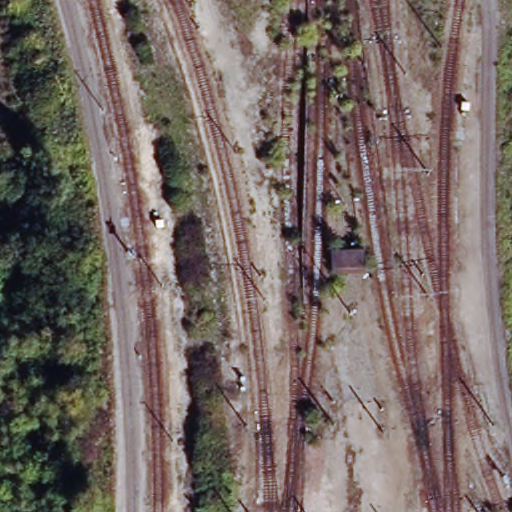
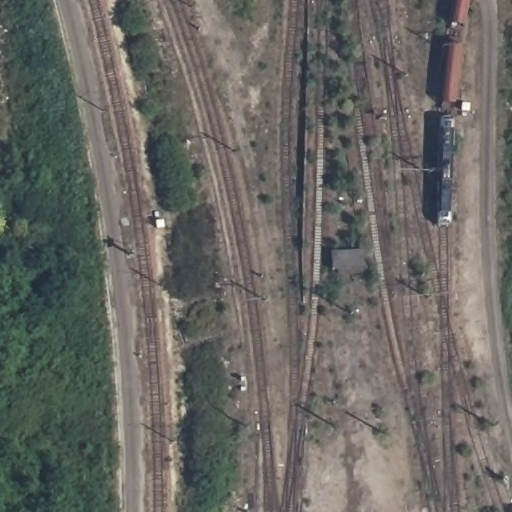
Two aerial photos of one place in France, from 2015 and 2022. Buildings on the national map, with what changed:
unchanged [(364,276),(331,278),(330,254),(362,251),(364,276)]

